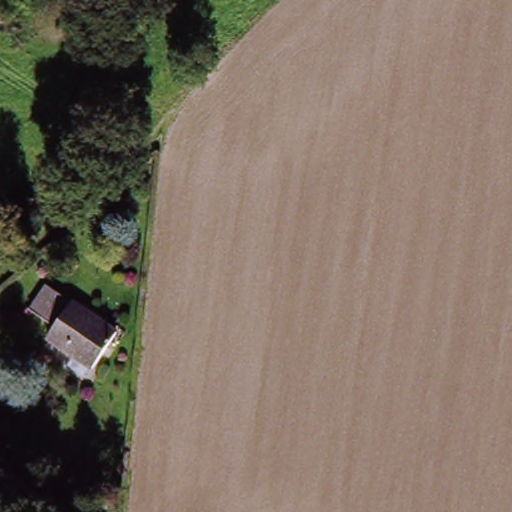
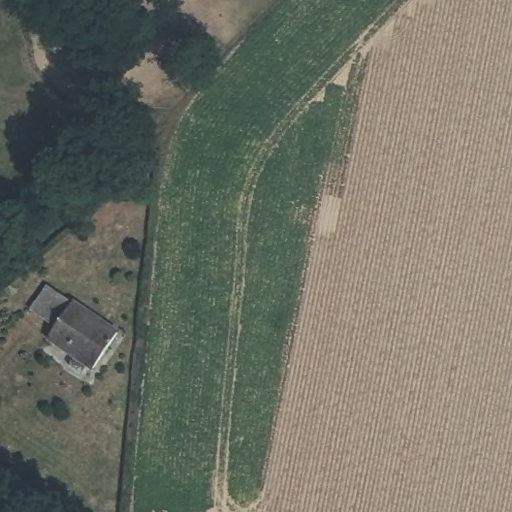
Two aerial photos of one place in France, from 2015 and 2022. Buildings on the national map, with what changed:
unchanged [(32,305),(55,280),(78,302),(56,328),(32,305)]
unchanged [(78,302),(80,301),(103,322),(107,321),(120,333),(89,369),(67,350),(66,351),(49,337),(56,328),(78,302)]

